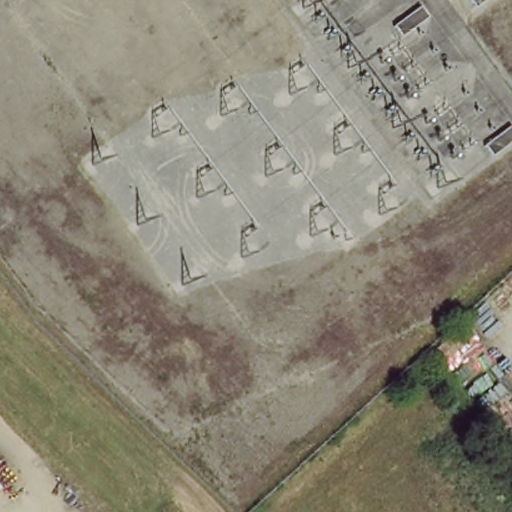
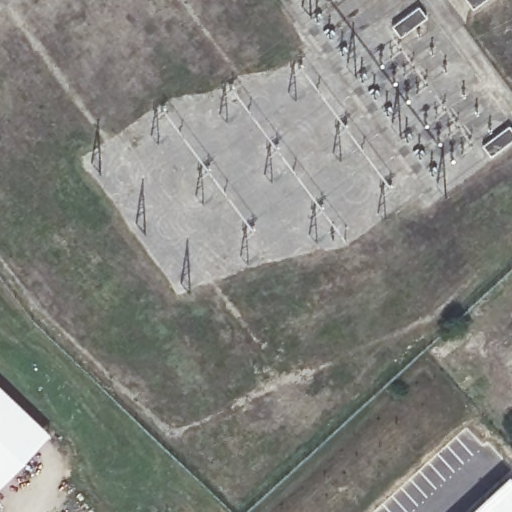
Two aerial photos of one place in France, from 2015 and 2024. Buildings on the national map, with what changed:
new [(1,487),(0,486),(0,387),(50,434),(1,487)]
new [(504,477),(512,486),(512,512),(466,512),(504,477)]
unchanged [(0,487),(0,486),(1,487),(0,487)]

